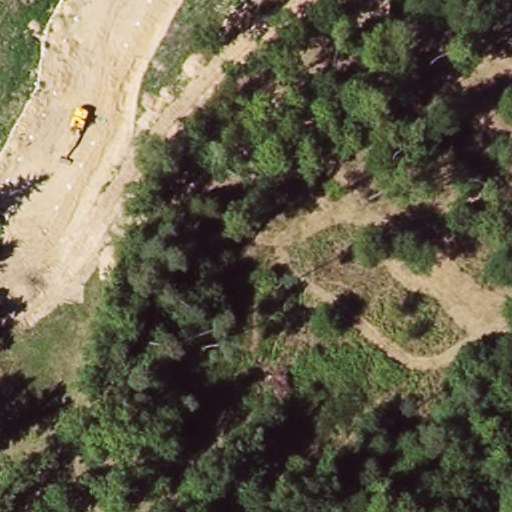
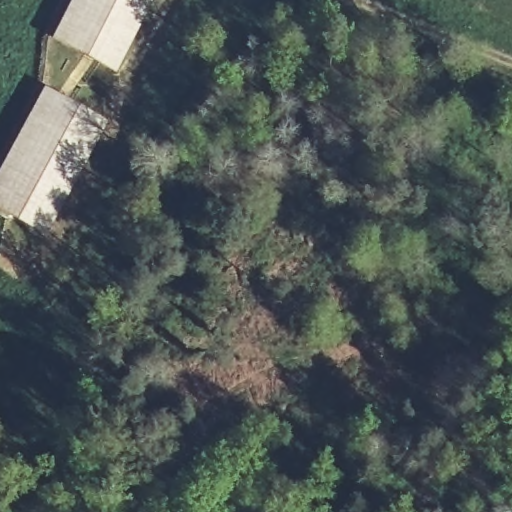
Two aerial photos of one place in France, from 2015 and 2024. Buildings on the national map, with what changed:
new [(117,73),(52,40),(73,0),(155,0),(117,73)]
new [(47,237),(0,212),(0,171),(46,87),(110,120),(47,237)]

